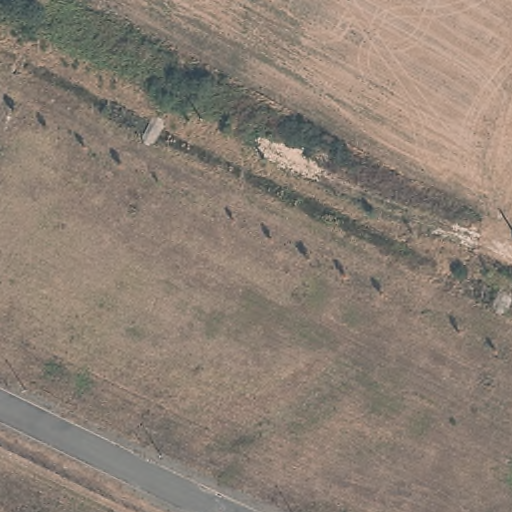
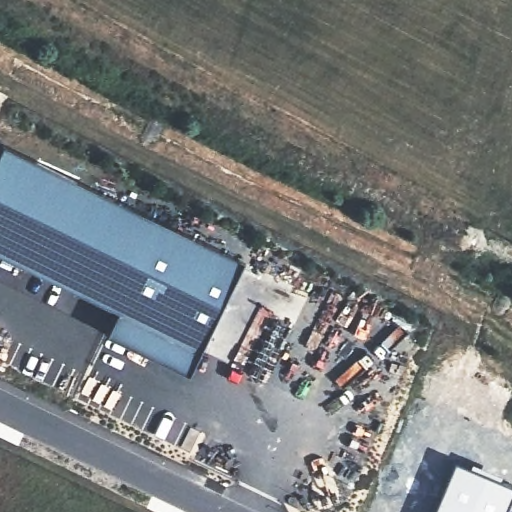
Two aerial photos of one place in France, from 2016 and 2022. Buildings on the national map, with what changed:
new [(240,260),(186,372),(105,333),(116,309),(0,254),(0,152),(4,145),(240,260)]

